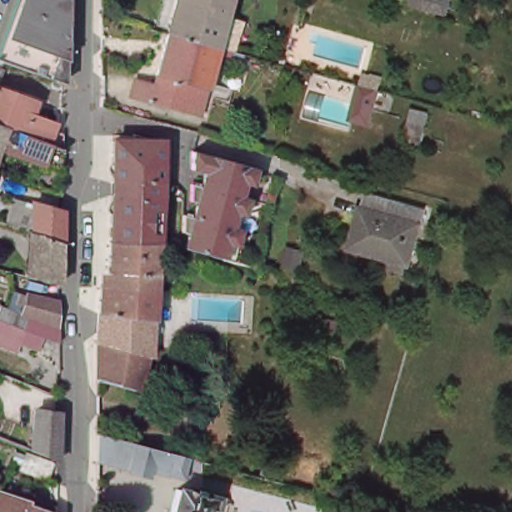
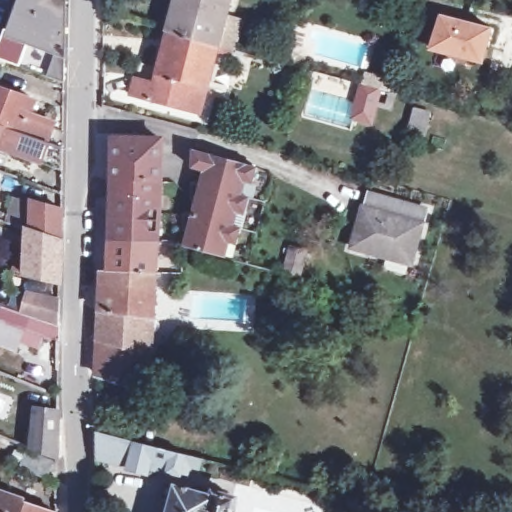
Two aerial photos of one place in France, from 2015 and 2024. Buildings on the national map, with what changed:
unchanged [(2,59),(23,0),(66,0),(65,82),(2,59)]
unchanged [(217,46),(168,32),(177,0),(230,0),(225,19),(217,46)]
new [(438,14),(493,28),(483,66),(428,52),(438,14)]
unchanged [(217,46),(215,54),(205,87),(156,74),(168,32),(217,46)]
unchanged [(0,77),(0,66),(3,67),(0,77)]
unchanged [(197,116),(130,97),(135,77),(154,82),(156,74),(205,87),(197,116)]
unchanged [(364,76),(380,80),(377,90),(362,85),(364,76)]
unchanged [(0,88),(36,101),(30,120),(65,131),(65,146),(0,124),(0,88)]
unchanged [(410,106),(427,110),(416,145),(400,141),(410,106)]
unchanged [(0,146),(0,124),(65,146),(64,169),(0,146)]
unchanged [(161,192),(112,191),(114,139),(136,140),(137,135),(137,132),(162,139),(162,142),(161,192)]
unchanged [(210,171),(197,167),(198,149),(201,150),(263,167),(258,185),(250,183),(245,196),(255,199),(251,216),(242,214),(238,227),(247,230),(242,247),(232,246),(229,258),(197,250),(200,233),(193,231),(193,216),(202,218),(205,202),(197,201),(197,182),(208,186),(210,171)]
unchanged [(112,191),(161,192),(161,214),(160,215),(158,236),(110,235),(112,191)]
unchanged [(412,258),(386,252),(385,256),(349,245),(360,206),(365,192),(380,196),(425,208),(412,258)]
unchanged [(32,273),(27,272),(33,232),(28,230),(10,224),(20,199),(35,204),(63,209),(63,242),(62,281),(32,273)]
unchanged [(158,236),(157,267),(110,265),(110,235),(158,236)]
unchanged [(155,312),(100,306),(102,278),(110,278),(110,265),(157,267),(155,312)]
unchanged [(16,351),(0,345),(0,312),(3,305),(8,307),(15,290),(32,295),(62,304),(61,326),(60,335),(60,341),(43,335),(39,347),(20,340),(16,351)]
unchanged [(155,312),(154,331),(100,325),(100,306),(155,312)]
unchanged [(100,325),(154,331),(153,352),(149,351),(140,382),(100,369),(100,325)]
unchanged [(57,458),(30,448),(36,408),(58,416),(57,458)]
unchanged [(98,432),(149,446),(199,459),(197,468),(190,466),(187,472),(180,471),(180,473),(148,466),(147,471),(129,466),(129,465),(104,457),(103,474),(97,474),(98,456),(98,432)]
unchanged [(26,452),(52,461),(47,477),(20,468),(26,452)]
unchanged [(175,486),(213,496),(220,492),(235,497),(238,501),(235,512),(168,512),(175,486)]
unchanged [(0,487),(22,495),(21,502),(57,511),(56,512),(0,512),(0,487)]

